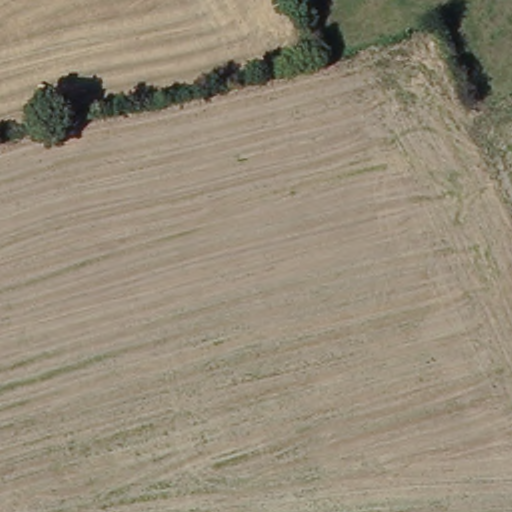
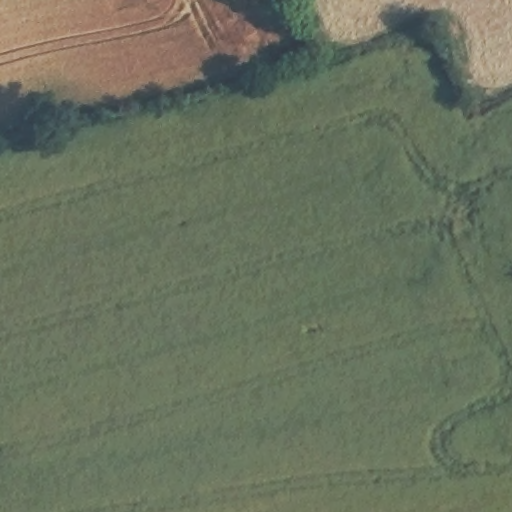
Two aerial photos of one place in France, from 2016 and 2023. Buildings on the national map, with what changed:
[]

